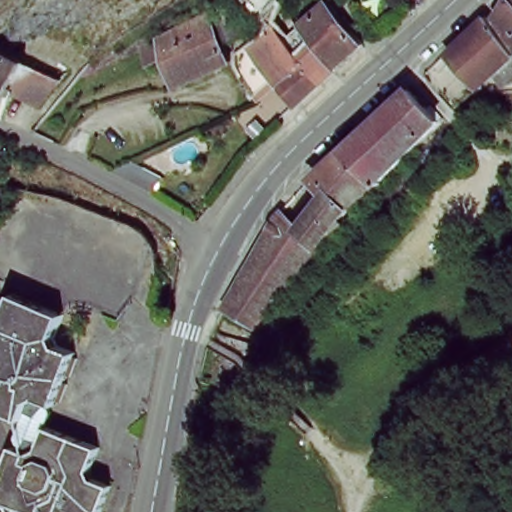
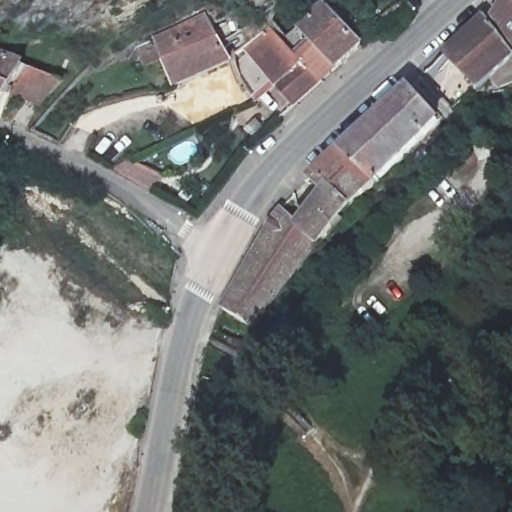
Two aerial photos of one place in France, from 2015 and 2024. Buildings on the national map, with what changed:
unchanged [(512,0),(512,45),(492,19),(512,0)]
unchanged [(332,4),(368,43),(327,81),(290,40),(332,4)]
unchanged [(147,58),(160,50),(153,38),(204,11),(232,57),(180,85),(166,61),(152,68),(147,58)]
unchanged [(478,95),(448,58),(486,23),(512,60),(512,64),(478,95)]
unchanged [(327,81),(301,105),(286,89),(260,101),(247,82),(240,51),(278,27),(290,40),(327,81)]
unchanged [(41,61),(27,104),(0,96),(0,47),(41,61)]
unchanged [(405,87),(435,123),(384,175),(350,138),(405,87)]
unchanged [(384,175),(359,200),(264,319),(233,297),(285,204),(292,196),(311,212),(339,177),(324,162),(350,138),(384,175)]
demolished [(33,400),(24,404),(19,420),(0,414),(0,311),(4,300),(57,319),(48,340),(53,347),(69,353),(49,406),(33,400)]
demolished [(5,509),(0,507),(0,471),(9,449),(22,453),(34,447),(40,430),(69,440),(94,449),(87,469),(91,478),(108,483),(97,512),(5,512),(5,509)]

